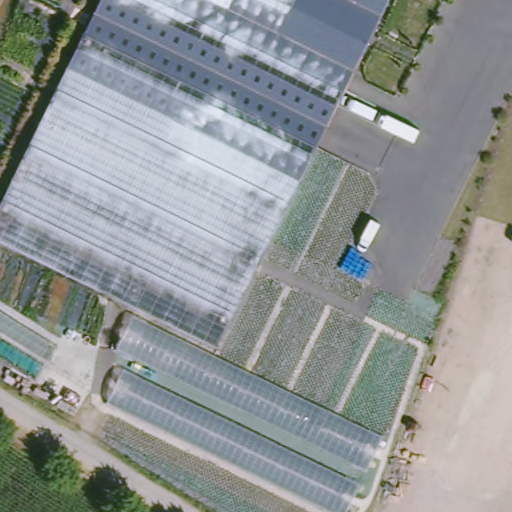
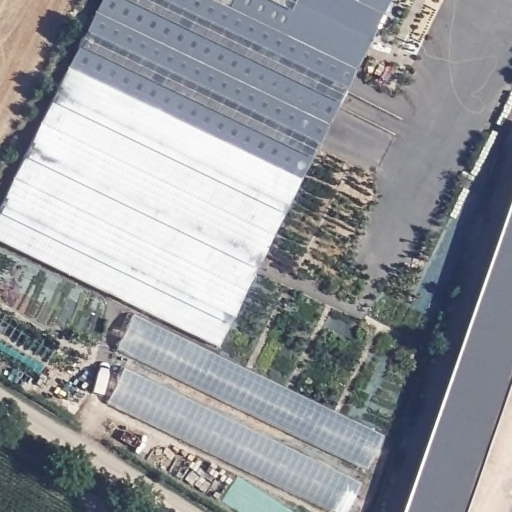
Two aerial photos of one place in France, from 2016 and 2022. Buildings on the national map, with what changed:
unchanged [(0,241),(0,216),(104,0),(390,0),(222,348),(0,241)]
new [(468,512),(405,512),(512,204),(512,385),(468,512)]
unchanged [(0,317),(57,355),(40,379),(0,354),(0,317)]
unchanged [(383,435),(368,469),(119,349),(135,317),(383,435)]
unchanged [(362,489),(352,512),(329,512),(109,405),(126,373),(362,489)]

